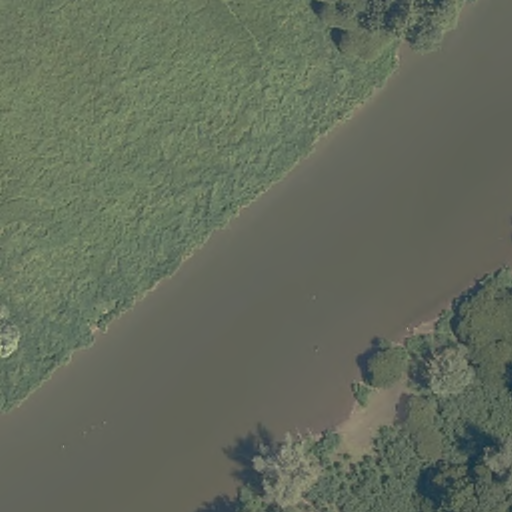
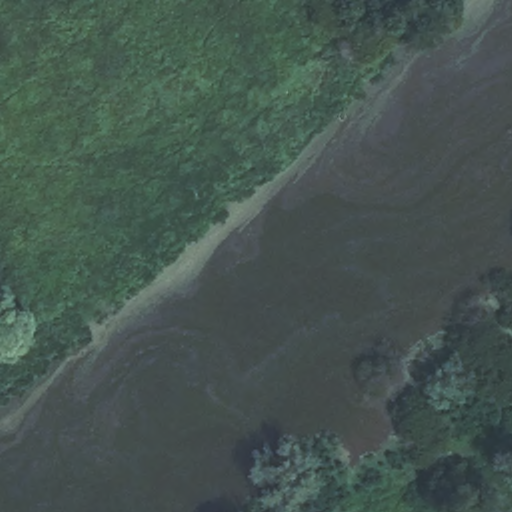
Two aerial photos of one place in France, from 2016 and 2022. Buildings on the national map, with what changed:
unchanged [(330,367),(319,351),(337,341),(348,355),(337,363),(330,367)]

